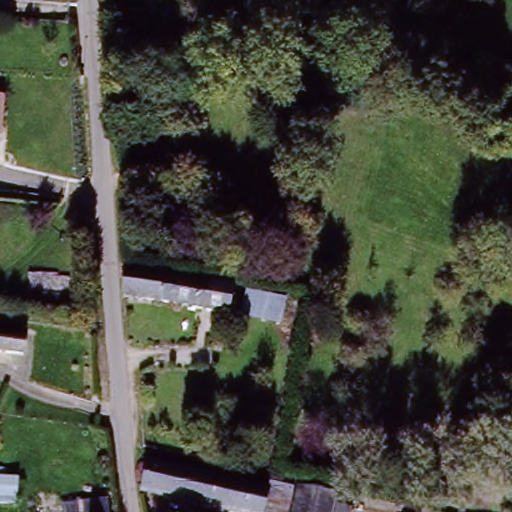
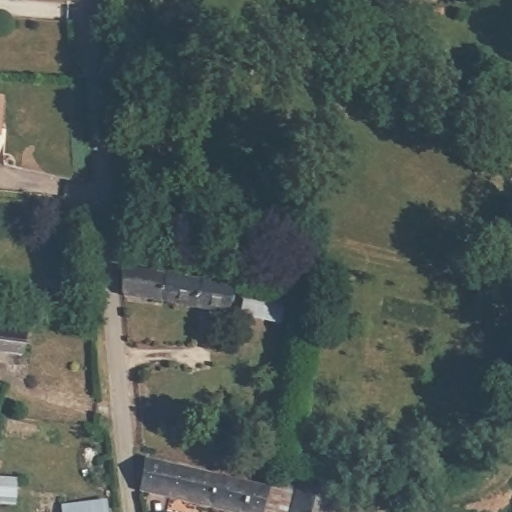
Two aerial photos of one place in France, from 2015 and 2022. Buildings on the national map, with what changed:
unchanged [(231,75),(202,105),(184,83),(212,56),(231,75)]
unchanged [(0,120),(0,94),(2,94),(2,120),(0,120)]
unchanged [(163,268),(162,271),(162,277),(145,275),(148,265),(163,268)]
unchanged [(117,270),(145,275),(161,278),(160,286),(158,305),(118,297),(117,270)]
unchanged [(161,278),(200,284),(201,275),(227,281),(225,288),(233,289),(230,313),(158,305),(160,286),(161,278)]
unchanged [(283,331),(245,330),(251,296),(283,301),(283,331)]
unchanged [(0,330),(27,333),(25,349),(0,346),(0,330)]
unchanged [(249,512),(240,510),(145,486),(148,456),(190,468),(247,483),(272,490),(265,512),(249,512)]
unchanged [(0,506),(0,480),(15,482),(12,506),(0,506)]
unchanged [(306,491),(340,499),(338,504),(336,512),(300,512),(305,497),(306,491)]

